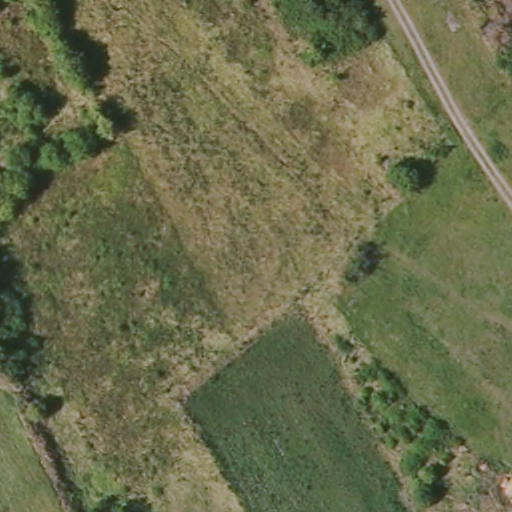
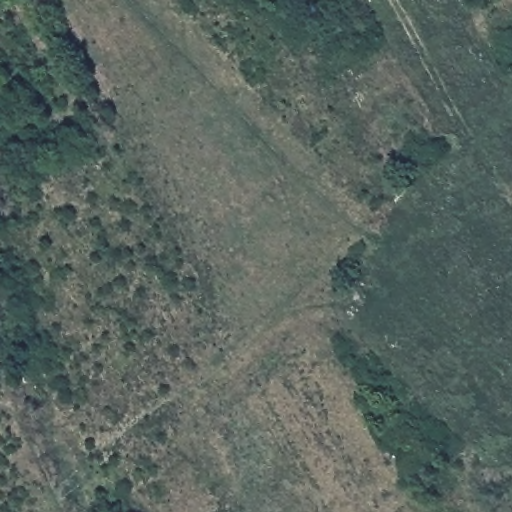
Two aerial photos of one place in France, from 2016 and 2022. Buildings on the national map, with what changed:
unchanged [(377,161),(385,155),(390,151),(403,165),(398,170),(391,176),(377,161)]

